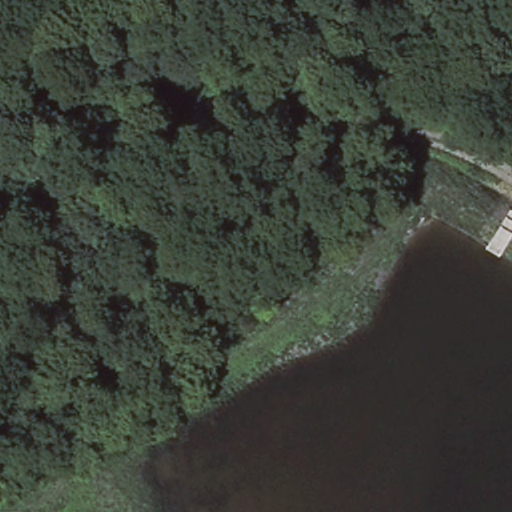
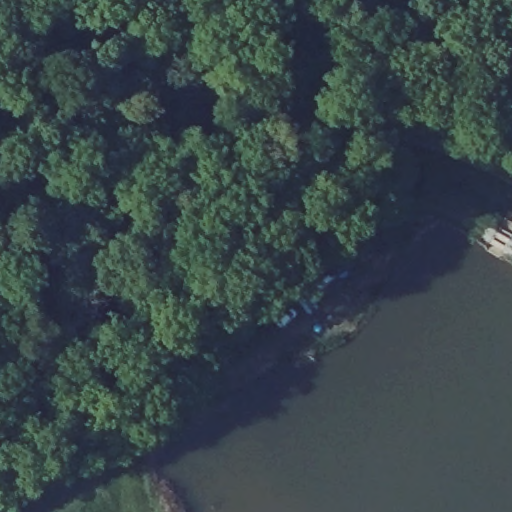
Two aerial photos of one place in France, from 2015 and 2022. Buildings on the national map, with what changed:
[]

